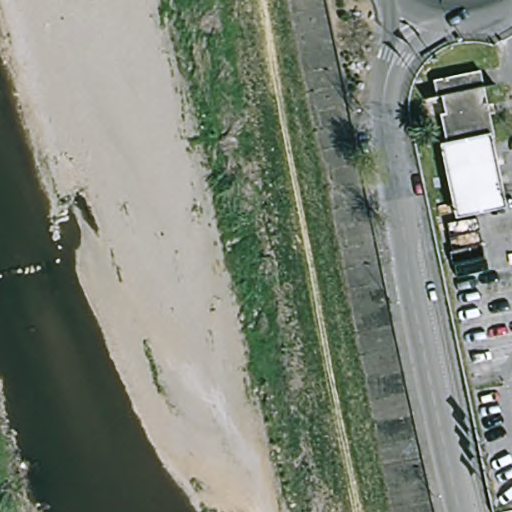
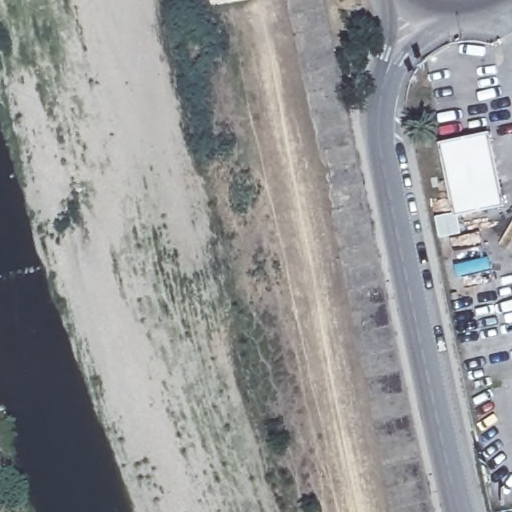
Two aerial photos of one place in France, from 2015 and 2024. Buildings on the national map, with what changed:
unchanged [(488,139),(485,139),(441,148),(434,115),(441,114),(437,95),(430,97),(427,80),(474,71),(488,139)]
unchanged [(485,139),(499,207),(449,218),(435,150),(441,148),(485,139)]

